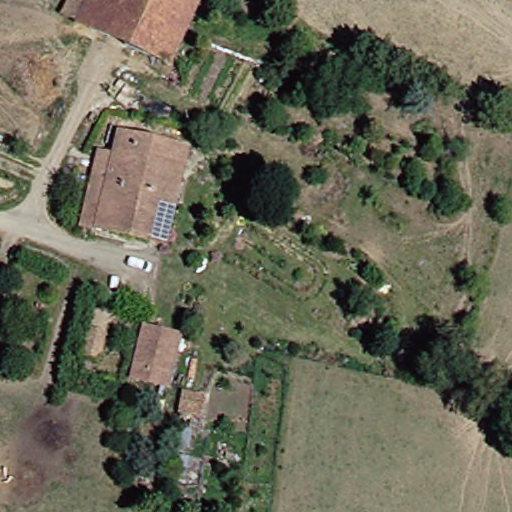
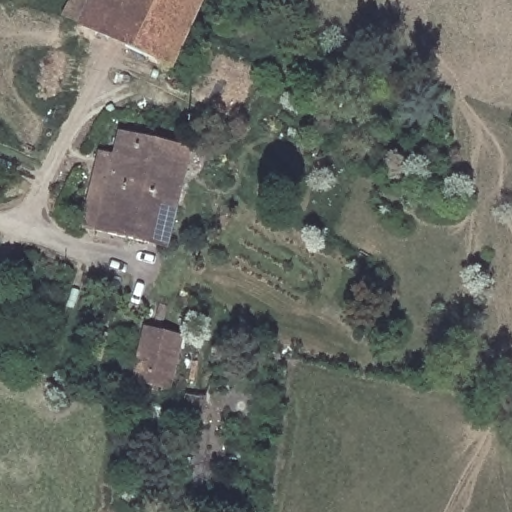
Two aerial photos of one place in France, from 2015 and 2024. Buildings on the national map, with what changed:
unchanged [(70,18),(78,0),(95,0),(100,2),(100,0),(205,0),(176,66),(150,55),(89,27),(70,18)]
unchanged [(99,230),(120,152),(124,136),(125,130),(195,150),(188,169),(175,165),(152,242),(99,230)]
unchanged [(106,150),(120,152),(99,230),(85,226),(106,150)]
unchanged [(92,327),(86,348),(76,343),(81,325),(92,327)]
unchanged [(188,337),(177,386),(139,376),(152,330),(188,337)]
unchanged [(179,390),(191,391),(189,407),(177,405),(179,390)]

